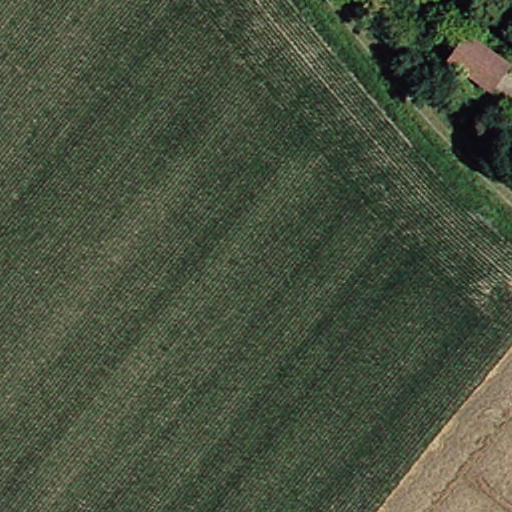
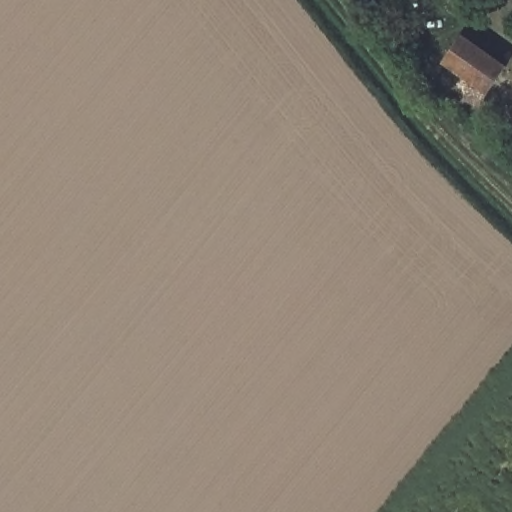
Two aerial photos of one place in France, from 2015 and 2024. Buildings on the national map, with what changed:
unchanged [(478,89),(432,56),(448,30),(496,63),(478,89)]

